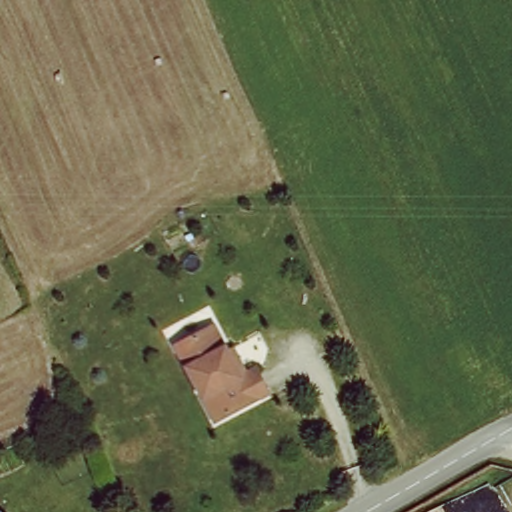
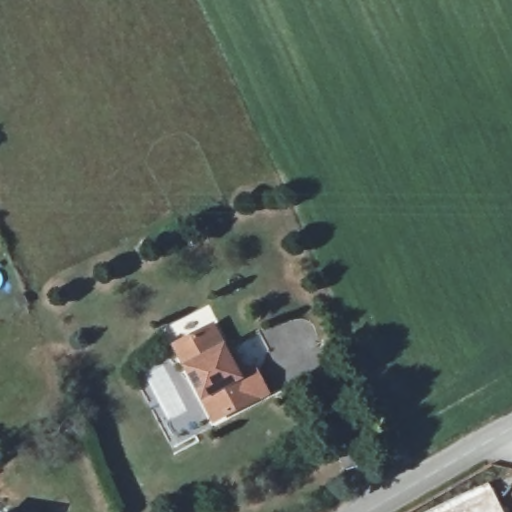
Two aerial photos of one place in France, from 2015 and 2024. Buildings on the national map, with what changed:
unchanged [(202,397),(173,346),(210,324),(225,352),(231,349),(234,354),(244,372),(254,366),(267,390),(227,413),(215,420),(202,397)]

